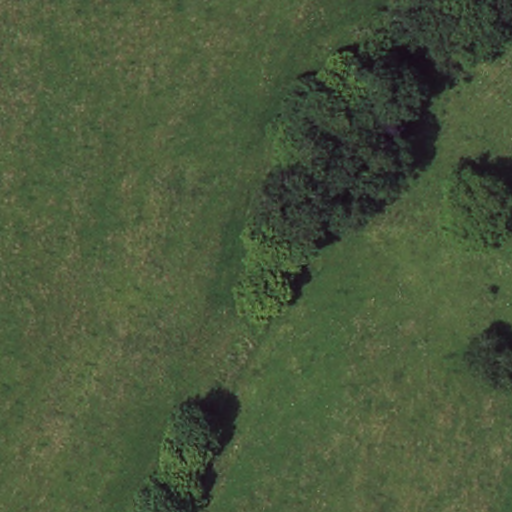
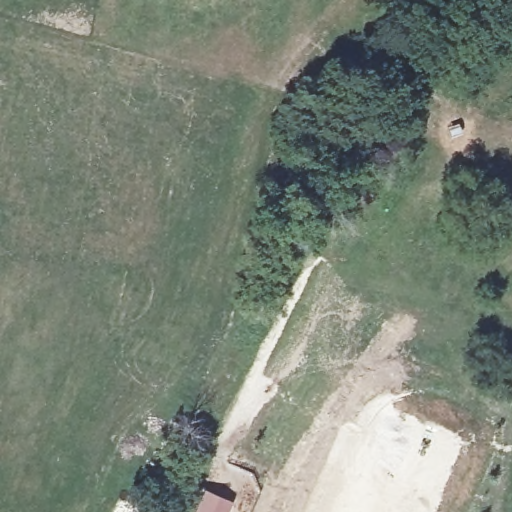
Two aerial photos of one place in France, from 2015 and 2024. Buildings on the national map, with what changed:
new [(228,512),(194,512),(203,489),(232,501),(228,512)]

